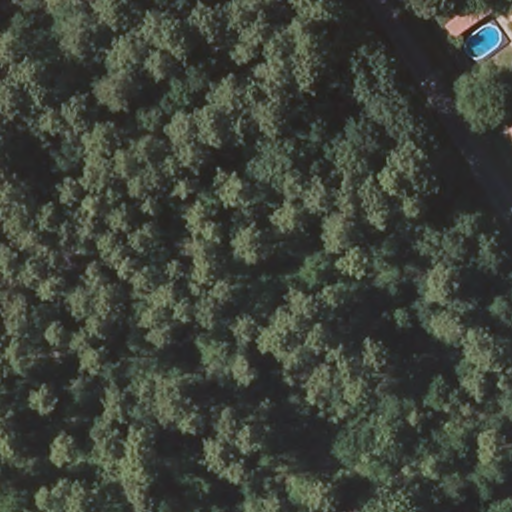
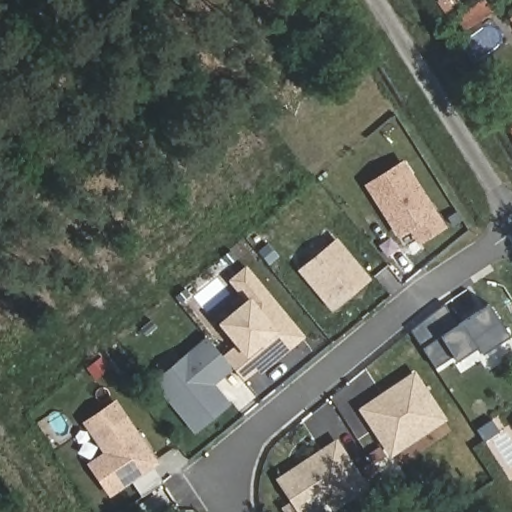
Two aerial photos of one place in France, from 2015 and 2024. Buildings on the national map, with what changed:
new [(485,4),(493,14),(460,36),(453,26),(485,4)]
unchanged [(512,128),(512,136),(508,130),(512,128)]
new [(406,162),(447,224),(425,239),(415,224),(403,232),(371,184),(406,162)]
new [(340,241),(371,278),(337,307),(306,270),(340,241)]
new [(253,299),(236,279),(249,268),(305,334),(265,368),(262,364),(246,378),(229,357),(245,343),(226,322),(253,299)]
new [(496,305),(512,329),(512,334),(487,351),(482,344),(461,358),(458,353),(440,365),(427,346),(485,306),(493,300),(496,305)]
new [(196,432),(154,383),(206,339),(233,369),(219,382),(212,387),(228,405),(196,432)]
new [(426,432),(395,453),(366,409),(417,374),(438,405),(447,418),(426,432)]
new [(112,404),(165,480),(145,493),(134,477),(114,491),(93,463),(110,451),(88,421),(112,404)]
new [(338,440),(368,483),(337,504),(326,512),(305,512),(282,478),(338,440)]

